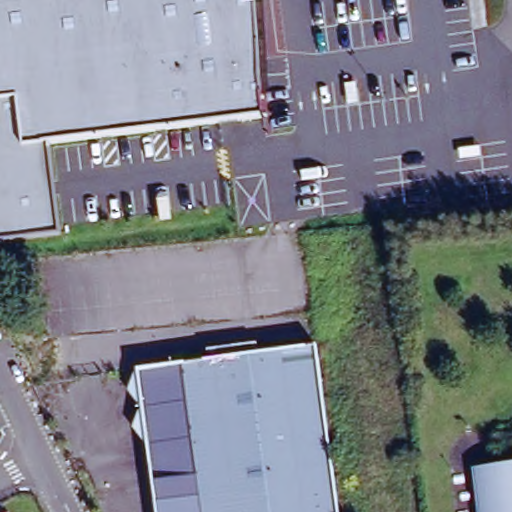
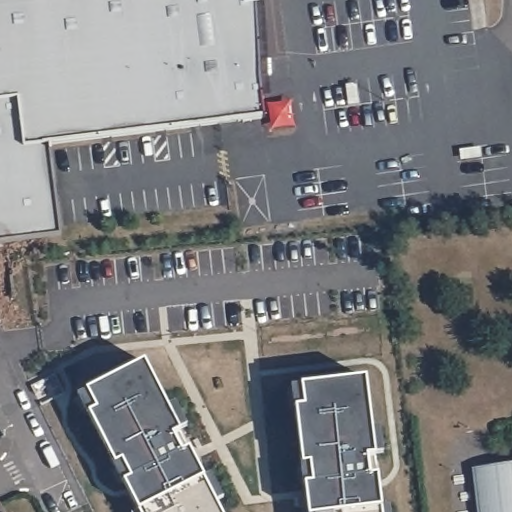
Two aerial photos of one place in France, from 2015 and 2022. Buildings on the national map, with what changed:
unchanged [(258,71),(263,117),(50,145),(60,232),(0,240),(0,0),(255,0),(256,7),(258,71)]
demolished [(337,512),(156,512),(150,451),(136,431),(145,411),(133,391),(142,371),(321,353),(337,512)]
new [(123,477),(130,473),(121,457),(115,460),(87,408),(78,391),(86,387),(144,357),(225,512),(141,512),(123,477)]
new [(303,478),(310,477),(308,458),(301,460),(295,402),(293,382),(302,381),(367,375),(380,512),(306,512),(303,478)]
new [(168,402),(175,399),(186,422),(180,425),(168,402)]
new [(372,426),(380,426),(382,451),(375,451),(372,426)]
unchanged [(476,464),(512,460),(512,512),(481,512),(476,464)]
new [(204,472),(210,468),(223,492),(216,496),(204,472)]
unchanged [(5,512),(0,512),(0,503),(5,512)]
new [(380,504),(387,503),(388,512),(380,512),(380,504)]

